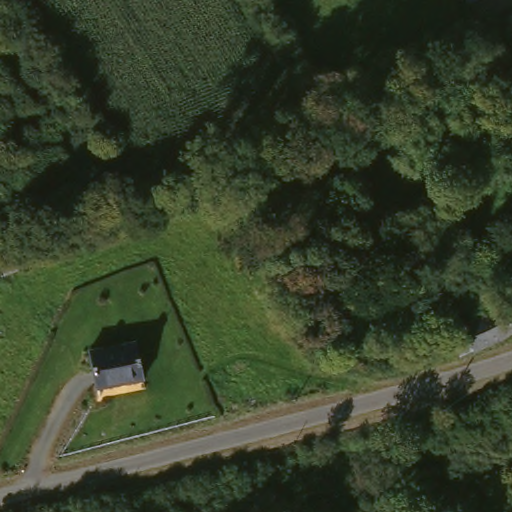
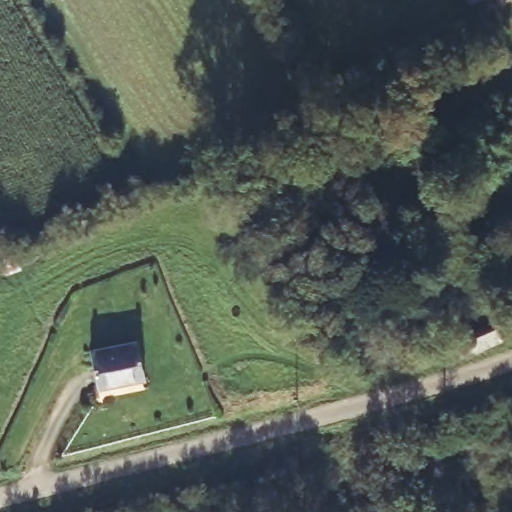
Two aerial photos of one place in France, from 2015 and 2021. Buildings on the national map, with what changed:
unchanged [(461,0),(489,0),(468,11),(461,0)]
unchanged [(469,193),(512,175),(512,206),(481,220),(469,193)]
unchanged [(480,220),(481,220),(512,206),(512,229),(489,240),(480,220)]
unchanged [(512,302),(512,331),(500,307),(512,302)]
unchanged [(404,376),(390,346),(451,318),(456,326),(482,316),(500,307),(512,331),(512,344),(473,363),(466,348),(404,376)]
unchanged [(147,386),(96,401),(84,356),(133,342),(147,386)]

